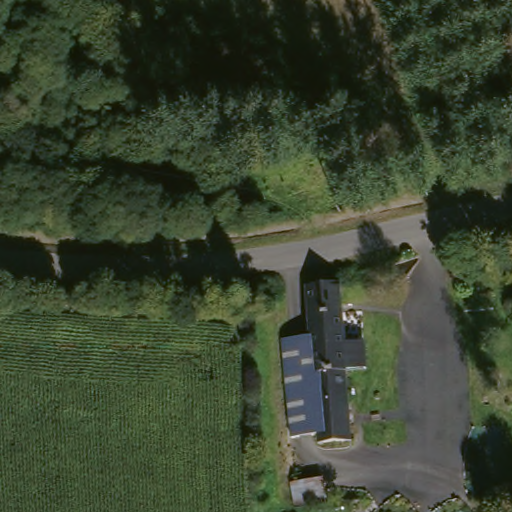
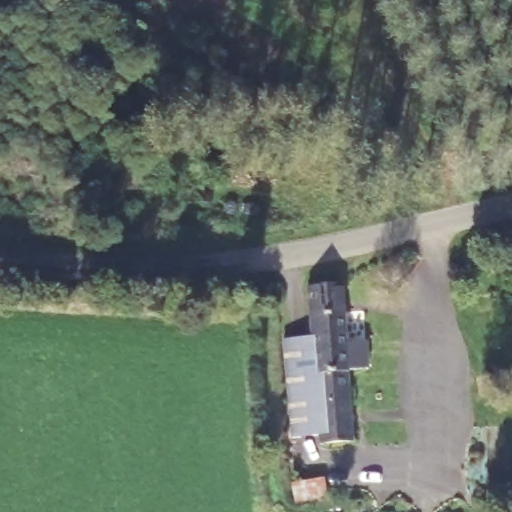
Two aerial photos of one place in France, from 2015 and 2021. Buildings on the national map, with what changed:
unchanged [(374,373),(353,376),(356,438),(325,438),(314,299),(312,280),(344,280),(350,341),(372,340),(374,373)]
unchanged [(291,435),(281,337),(317,336),(324,425),(325,433),(291,435)]

